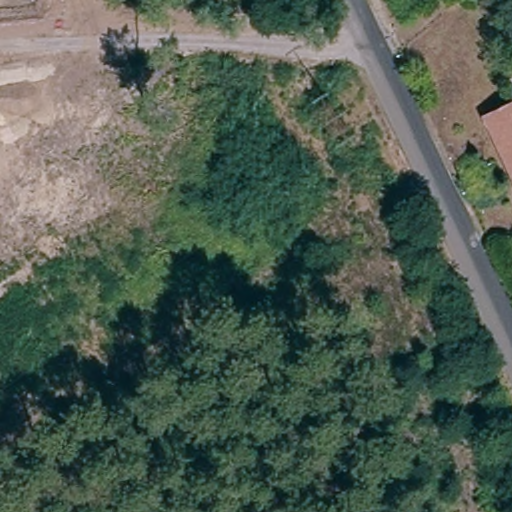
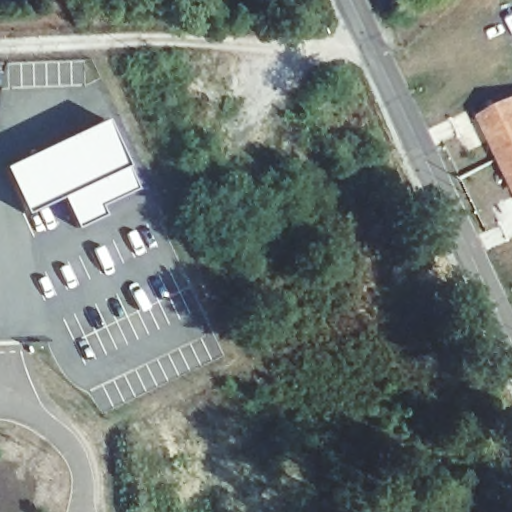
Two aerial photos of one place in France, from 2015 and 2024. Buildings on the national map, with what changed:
unchanged [(484,120),(495,115),(512,107),(512,178),(494,140),(484,120)]
new [(126,165),(136,188),(100,204),(105,213),(77,228),(63,194),(24,212),(1,166),(103,118),(126,165)]

